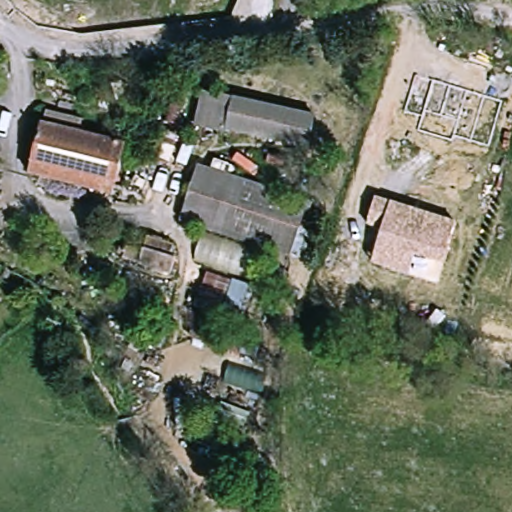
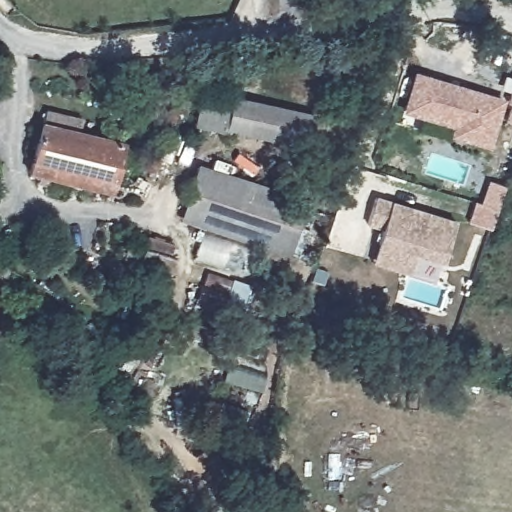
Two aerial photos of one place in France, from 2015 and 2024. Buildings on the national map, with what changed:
demolished [(443,103),(455,67),(487,77),(475,114),(443,103)]
new [(505,100),(490,149),(450,136),(452,128),(403,112),(415,71),(505,100)]
new [(511,104),(508,102),(512,89),(512,123),(505,121),(511,104)]
unchanged [(310,148),(227,131),(195,125),(204,91),(235,97),(316,115),(310,148)]
unchanged [(48,122),(126,140),(114,187),(36,169),(48,122)]
unchanged [(189,215),(204,165),(314,199),(300,248),(189,215)]
unchanged [(455,222),(444,265),(415,255),(410,275),(373,262),(382,233),(368,225),(375,197),(455,222)]
unchanged [(174,268),(128,257),(131,244),(145,247),(148,234),(176,240),(173,256),(176,257),(174,268)]
new [(218,297),(213,312),(196,306),(208,272),(252,287),(244,310),(227,304),(218,297)]

